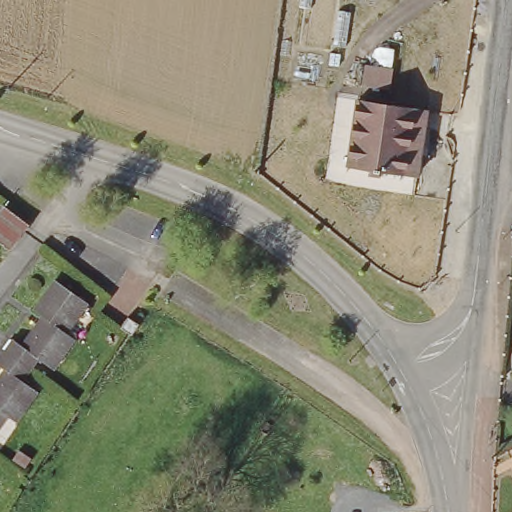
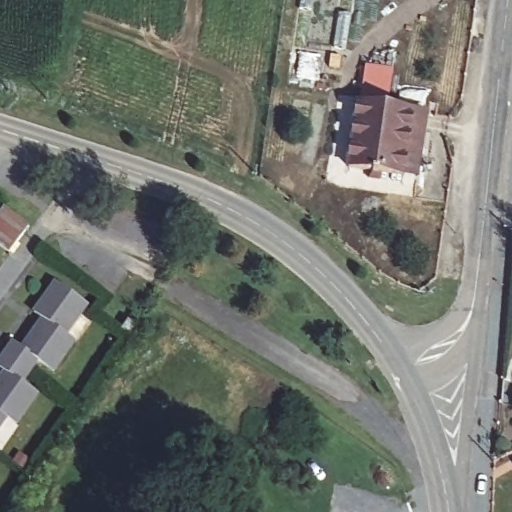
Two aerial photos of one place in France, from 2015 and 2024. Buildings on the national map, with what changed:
unchanged [(403,175),(349,168),(357,104),(412,111),(403,175)]
unchanged [(412,111),(429,114),(421,177),(403,175),(412,111)]
unchanged [(0,214),(3,210),(28,226),(20,237),(11,249),(0,241),(0,214)]
unchanged [(8,365),(3,361),(6,356),(8,356),(18,342),(26,348),(46,319),(38,313),(59,283),(89,304),(69,335),(78,341),(58,370),(43,360),(29,379),(8,365)]
unchanged [(119,322),(128,310),(139,317),(129,330),(119,322)]
unchanged [(8,365),(29,379),(25,385),(38,395),(19,425),(12,420),(0,437),(0,386),(8,375),(0,369),(0,365),(3,361),(8,365)]

